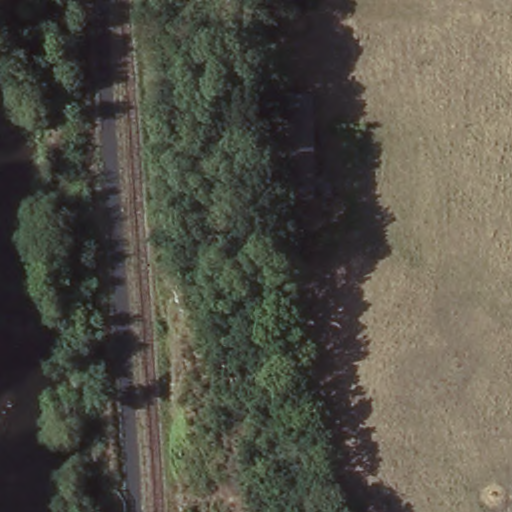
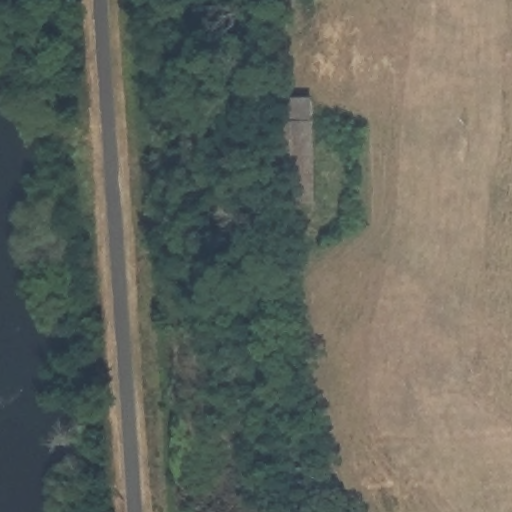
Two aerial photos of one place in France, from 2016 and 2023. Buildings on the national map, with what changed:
unchanged [(272,120),(270,92),(311,92),(313,115),(317,198),(274,201),(272,120)]

